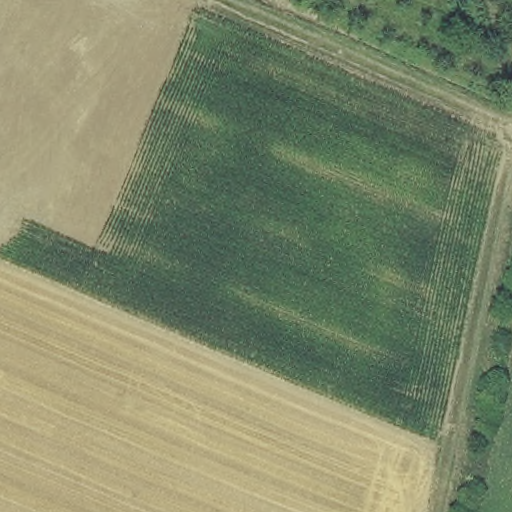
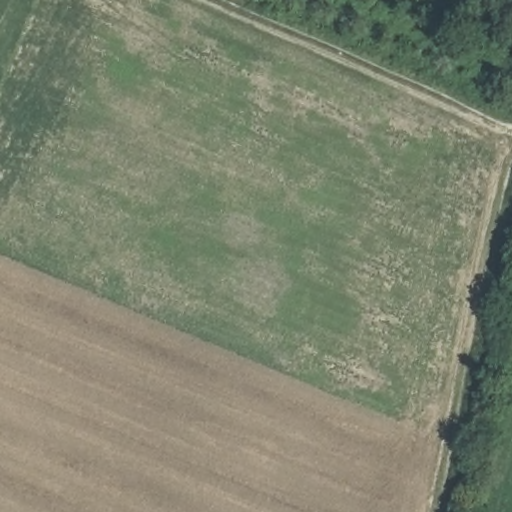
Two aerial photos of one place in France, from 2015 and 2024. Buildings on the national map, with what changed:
[]

